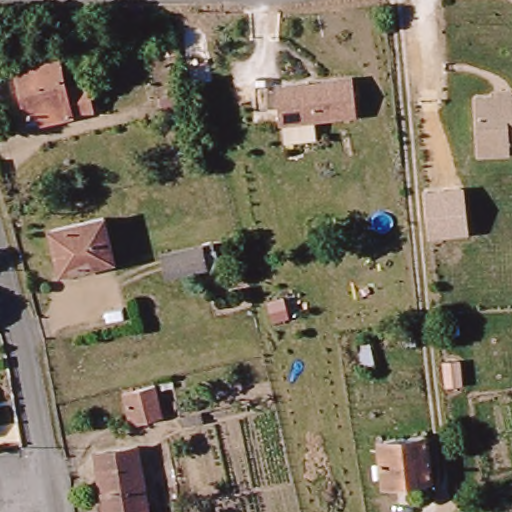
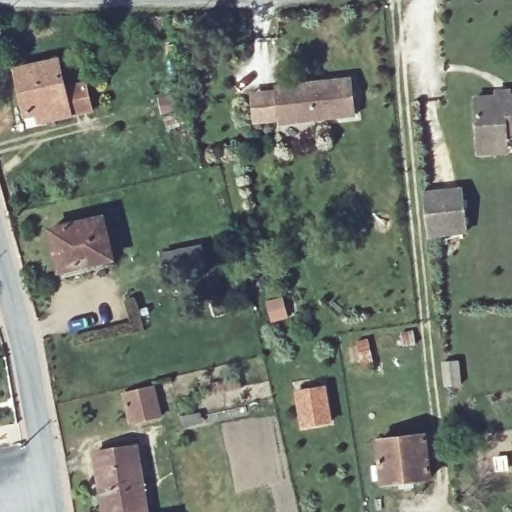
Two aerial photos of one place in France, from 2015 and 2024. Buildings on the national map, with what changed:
unchanged [(58,81),(80,76),(85,100),(23,113),(14,70),(54,61),(58,81)]
unchanged [(273,84),(352,75),(356,114),(277,124),(273,84)]
unchanged [(474,141),(473,141),(471,100),(512,97),(512,139),(503,139),(503,155),(474,156),(474,141)]
unchanged [(423,191),(465,186),(469,234),(429,240),(423,191)]
unchanged [(62,269),(53,225),(101,216),(110,260),(62,269)]
unchanged [(196,242),(201,270),(162,277),(156,250),(196,242)]
unchanged [(238,377),(241,392),(212,395),(207,382),(238,377)]
new [(326,387),(333,422),(305,428),(298,392),(326,387)]
unchanged [(157,412),(125,417),(121,393),(153,388),(157,412)]
unchanged [(384,485),(379,446),(422,440),(427,478),(384,485)]
unchanged [(133,444),(145,512),(101,512),(91,452),(133,444)]

